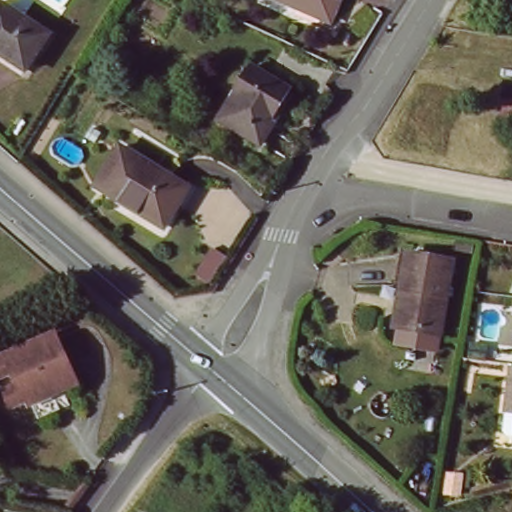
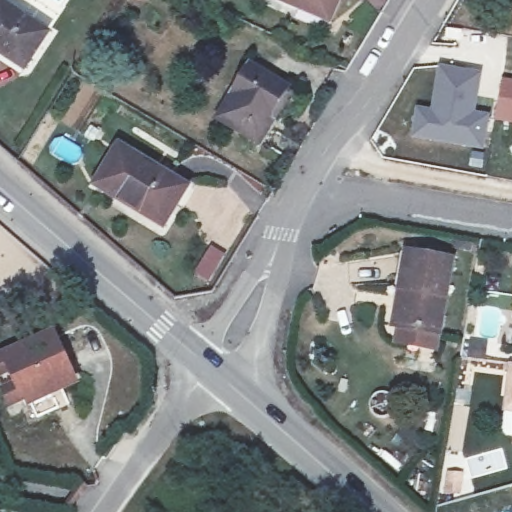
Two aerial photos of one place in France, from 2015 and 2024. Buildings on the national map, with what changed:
unchanged [(282,0),(343,0),(333,23),(282,0)]
unchanged [(55,35),(35,70),(0,48),(0,6),(2,2),(55,35)]
new [(414,105),(429,107),(436,63),(482,70),(476,111),(490,113),(482,152),(485,153),(483,170),(467,168),(471,149),(408,138),(414,105)]
unchanged [(295,90),(267,140),(225,118),(252,67),(295,90)]
unchanged [(500,118),(507,84),(512,84),(512,120),(500,118)]
unchanged [(190,189),(167,226),(104,186),(127,148),(190,189)]
unchanged [(401,293),(396,292),(405,255),(456,265),(442,338),(407,331),(394,329),(401,293)]
unchanged [(73,376),(59,382),(65,396),(34,410),(27,396),(8,403),(0,385),(0,356),(53,332),(73,376)]
unchanged [(507,414),(508,401),(512,376),(512,415),(507,414)]

